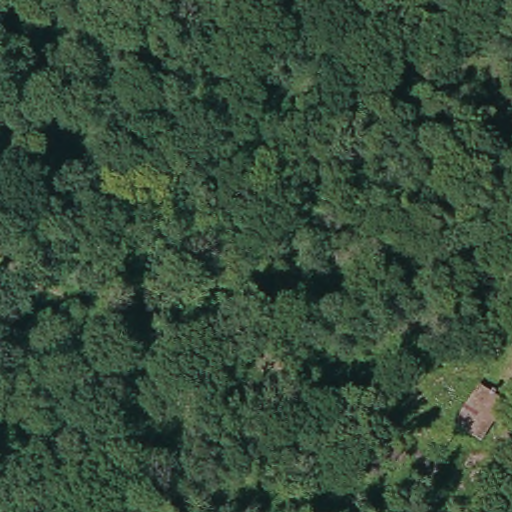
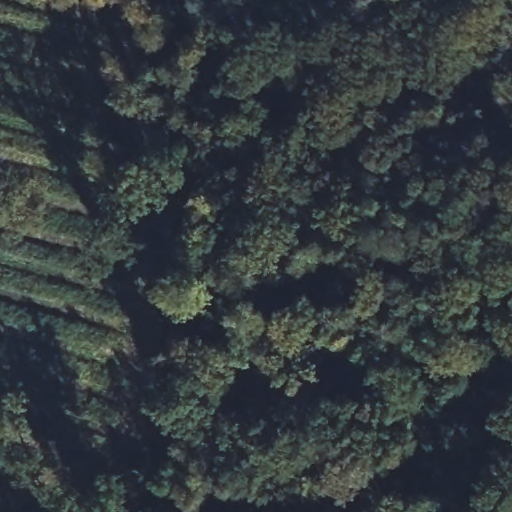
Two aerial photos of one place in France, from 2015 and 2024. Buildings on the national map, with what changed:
unchanged [(442,426),(476,381),(506,404),(475,442),(442,426)]

